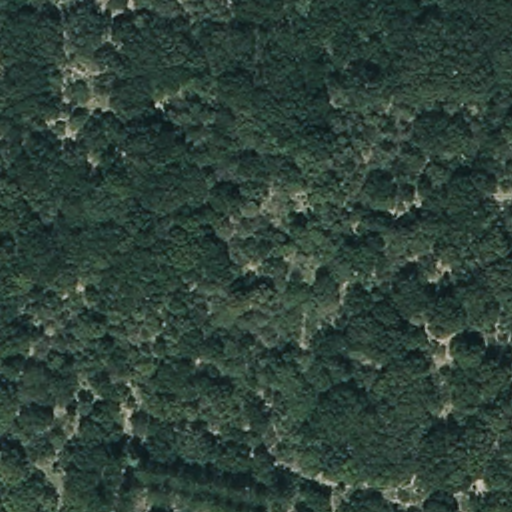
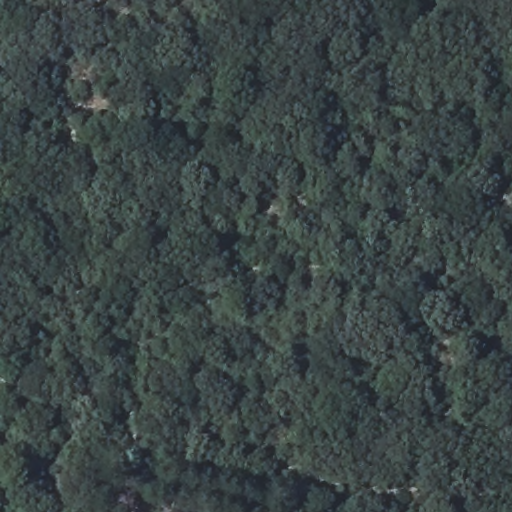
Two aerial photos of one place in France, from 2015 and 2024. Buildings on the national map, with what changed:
[]

